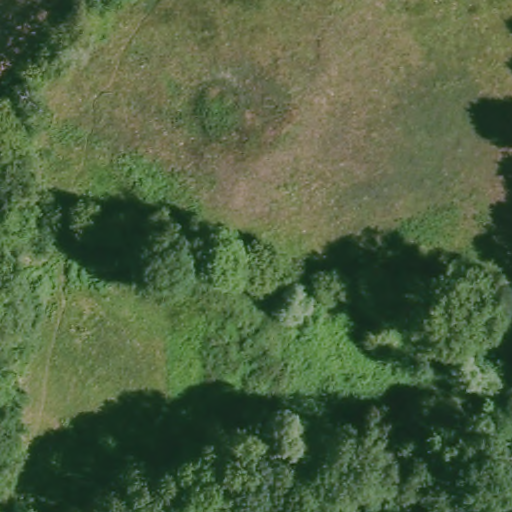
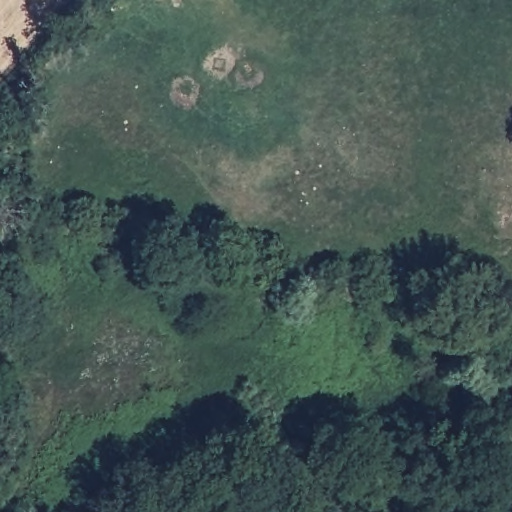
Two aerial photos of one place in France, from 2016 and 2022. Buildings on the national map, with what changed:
[]

